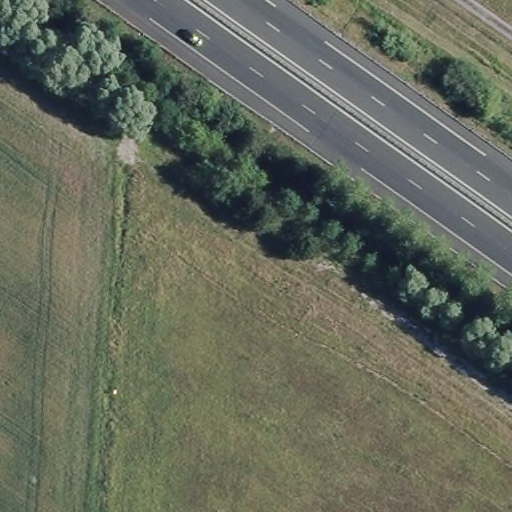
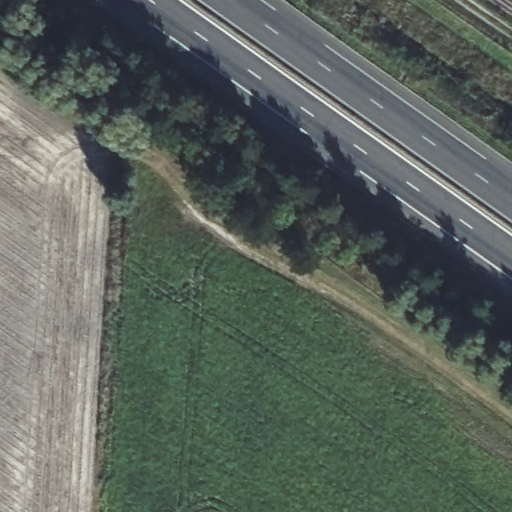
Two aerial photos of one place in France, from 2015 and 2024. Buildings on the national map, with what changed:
[]

